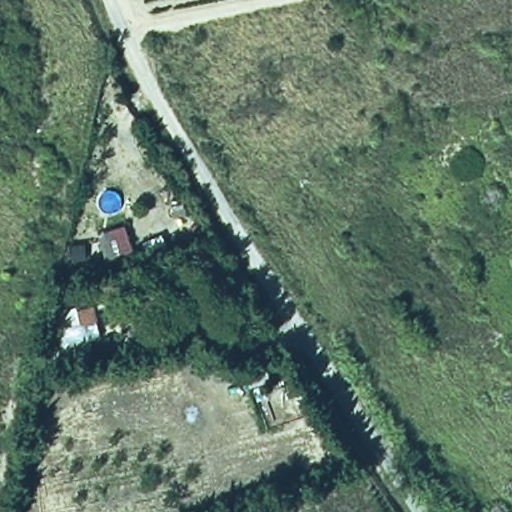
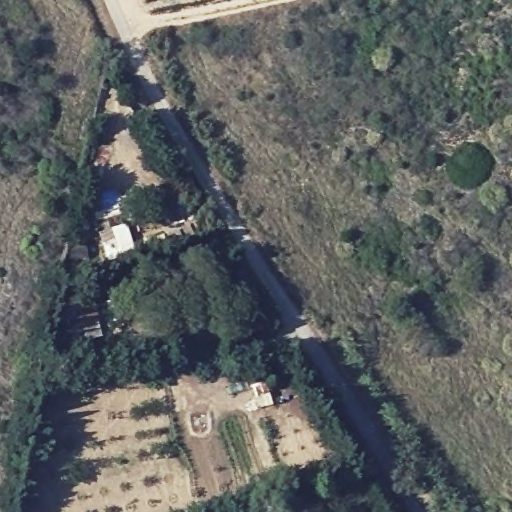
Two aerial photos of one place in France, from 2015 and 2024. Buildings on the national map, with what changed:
unchanged [(92,343),(94,363),(75,366),(72,356),(58,356),(52,304),(92,298),(100,340),(92,343)]

